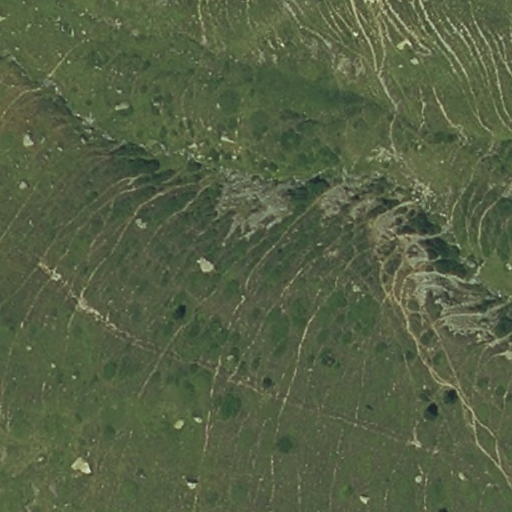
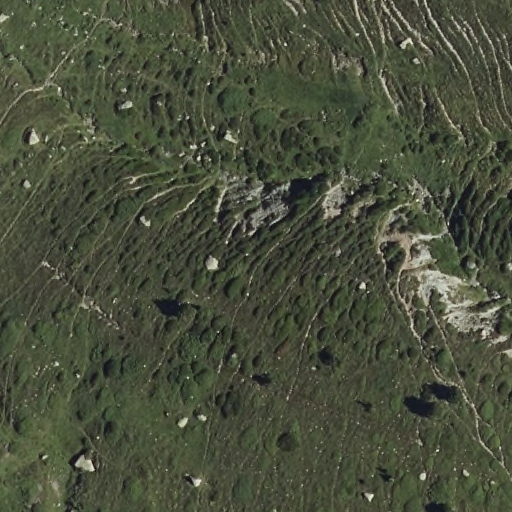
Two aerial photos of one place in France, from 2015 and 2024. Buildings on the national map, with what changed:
[]

